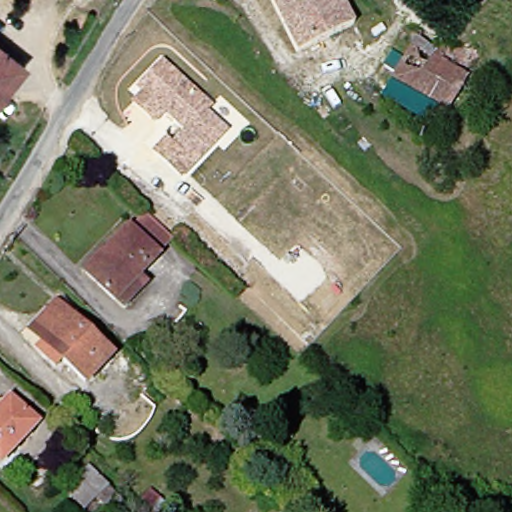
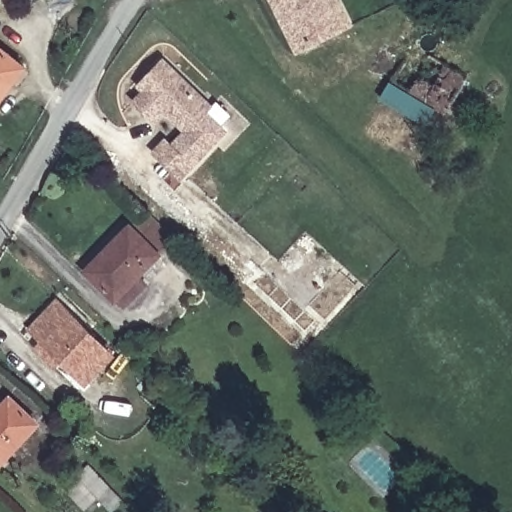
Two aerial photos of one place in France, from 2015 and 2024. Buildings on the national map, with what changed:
unchanged [(297,48),(274,0),(344,0),(354,21),(297,48)]
unchanged [(479,64),(451,114),(396,81),(416,48),(435,61),(444,45),(446,43),(479,64)]
unchanged [(4,99),(0,95),(0,46),(29,69),(4,99)]
unchanged [(214,102),(208,108),(229,126),(184,174),(156,149),(169,136),(174,141),(189,126),(168,107),(158,118),(135,98),(146,87),(140,82),(164,56),(214,102)]
unchanged [(153,284),(128,309),(90,273),(134,228),(149,212),(178,241),(164,256),(144,276),(153,284)]
unchanged [(116,351),(90,377),(45,334),(52,327),(43,318),(62,298),(116,351)]
unchanged [(0,453),(0,419),(19,399),(47,424),(11,463),(0,453)]
unchanged [(115,512),(81,476),(92,466),(126,501),(115,512)]

